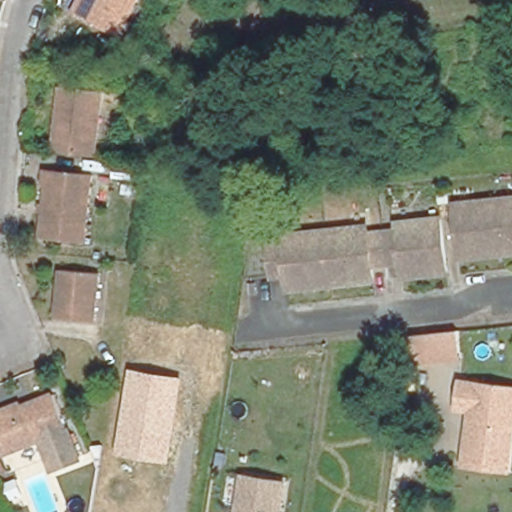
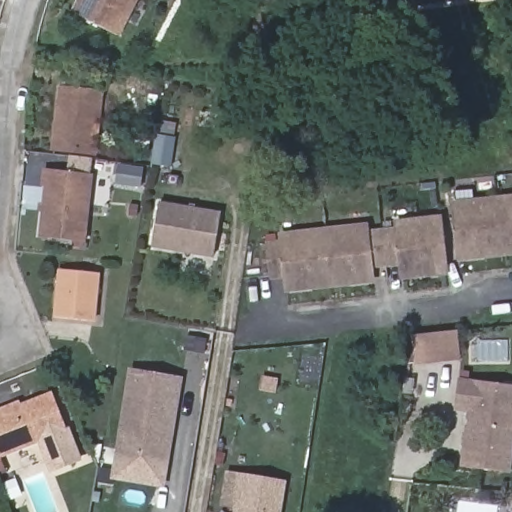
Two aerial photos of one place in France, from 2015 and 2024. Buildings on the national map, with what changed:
unchanged [(80,0),(139,0),(121,36),(74,13),(80,0)]
unchanged [(57,99),(60,79),(100,83),(97,103),(90,163),(50,158),(57,99)]
unchanged [(41,204),(45,204),(48,185),(44,184),(45,169),(50,169),(94,174),(85,242),(42,237),(45,211),(40,210),(41,204)]
unchanged [(512,194),(512,249),(458,256),(451,202),(512,194)]
new [(160,201),(220,212),(214,257),(152,246),(160,201)]
unchanged [(285,244),(284,236),(369,225),(370,233),(400,229),(400,221),(442,216),(450,270),(406,275),(405,260),(374,264),(376,279),(291,290),(290,275),(273,277),(270,246),(285,244)]
unchanged [(57,317),(62,270),(99,274),(94,321),(57,317)]
unchanged [(458,329),(462,361),(408,368),(407,335),(458,329)]
unchanged [(169,462),(117,453),(131,369),(184,377),(169,462)]
unchanged [(511,473),(459,466),(467,410),(453,409),(458,378),(512,385),(512,469),(511,473)]
unchanged [(0,475),(0,458),(0,421),(0,417),(20,409),(21,412),(55,400),(68,434),(39,446),(1,460),(5,472),(0,475)]
unchanged [(68,434),(80,464),(50,475),(39,446),(68,434)]
unchanged [(284,512),(235,512),(240,472),(289,480),(284,512)]

